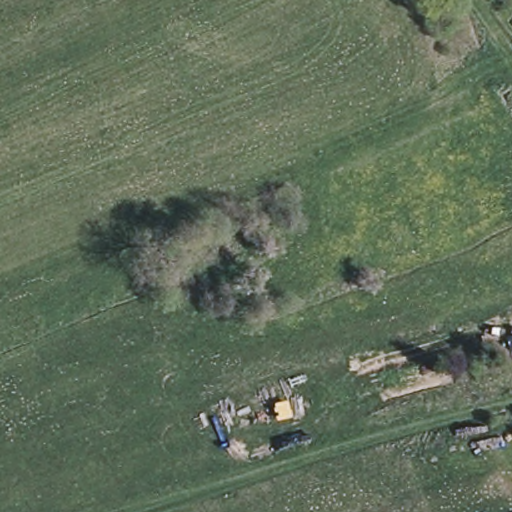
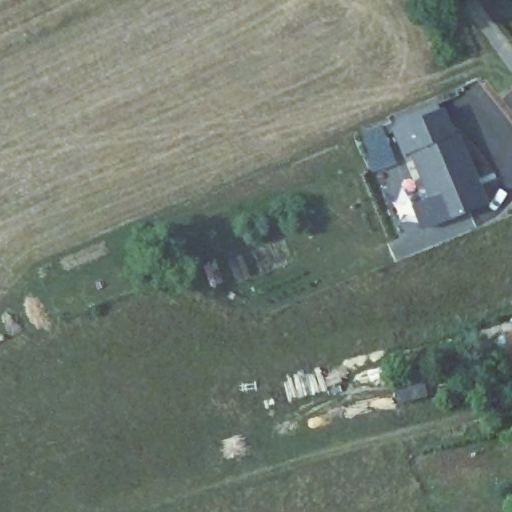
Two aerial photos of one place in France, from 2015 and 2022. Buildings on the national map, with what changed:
new [(427,197),(410,152),(402,154),(392,128),(442,107),(452,131),(457,129),(487,203),(420,229),(411,203),(427,197)]

